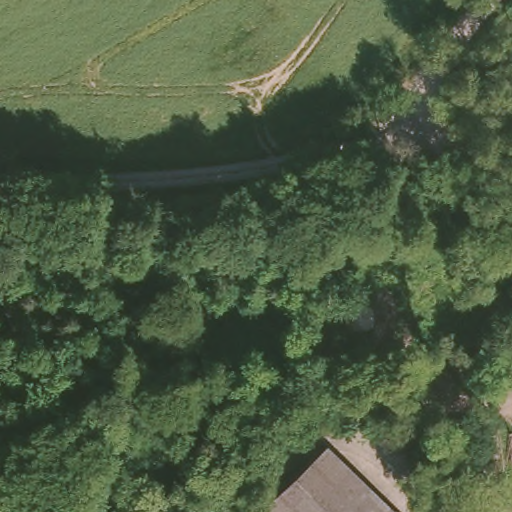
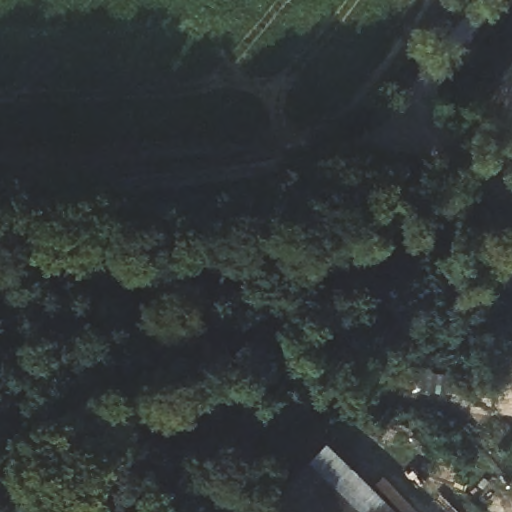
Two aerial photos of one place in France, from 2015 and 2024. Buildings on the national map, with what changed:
unchanged [(326,436),(405,512),(272,512),(261,501),(326,436)]

